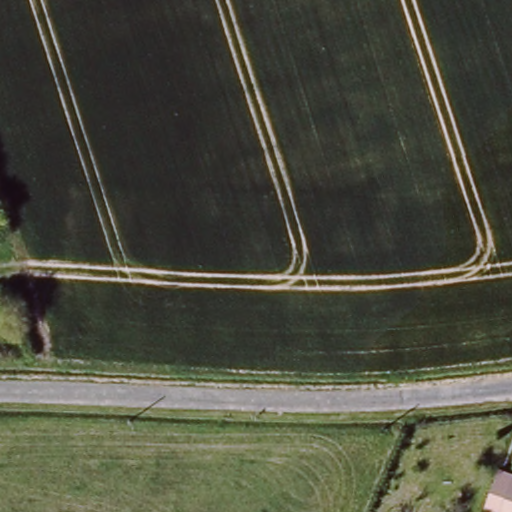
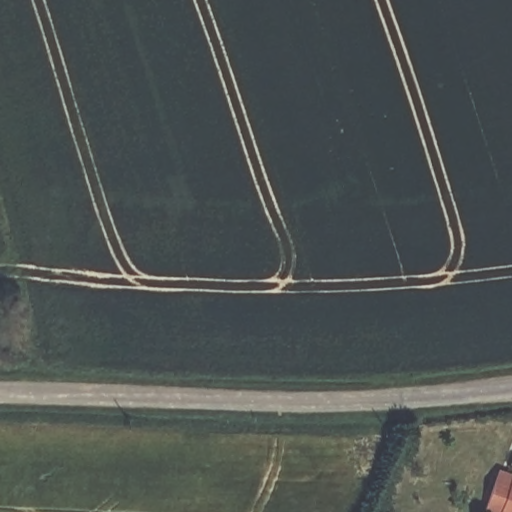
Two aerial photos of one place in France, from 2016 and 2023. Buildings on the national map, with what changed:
unchanged [(507,467),(512,469),(512,512),(506,512),(492,506),(507,467)]

